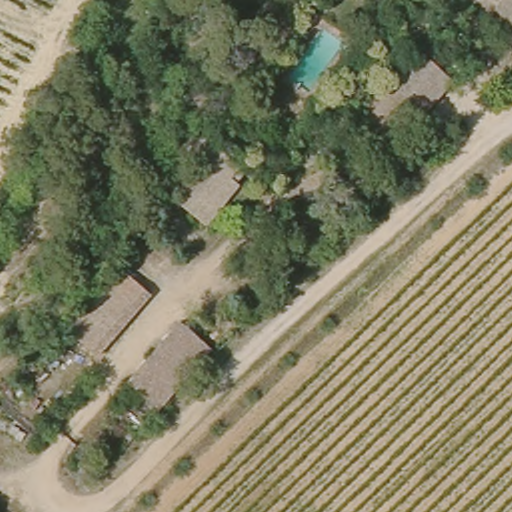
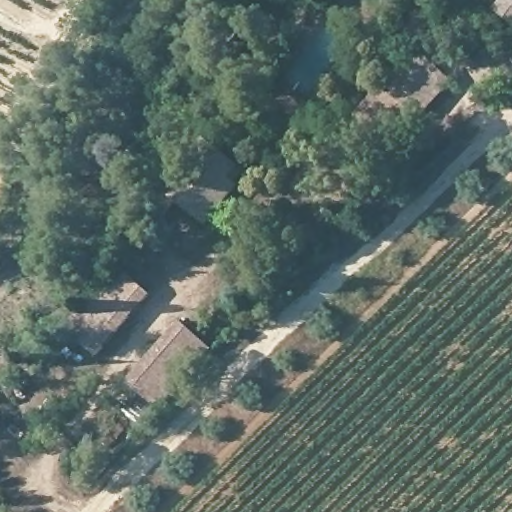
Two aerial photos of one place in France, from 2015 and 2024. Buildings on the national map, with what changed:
unchanged [(512,0),(512,26),(491,8),(498,0),(512,0)]
unchanged [(450,42),(458,31),(470,14),(482,21),(485,18),(487,20),(472,42),(465,53),(450,42)]
unchanged [(392,96),(383,89),(415,49),(454,80),(423,118),(414,116),(382,153),(361,134),(392,96)]
unchanged [(196,148),(207,134),(253,168),(212,223),(177,196),(209,155),(196,148)]
unchanged [(67,329),(115,268),(149,295),(99,354),(67,329)]
unchanged [(179,318),(212,346),(161,407),(128,379),(179,318)]

